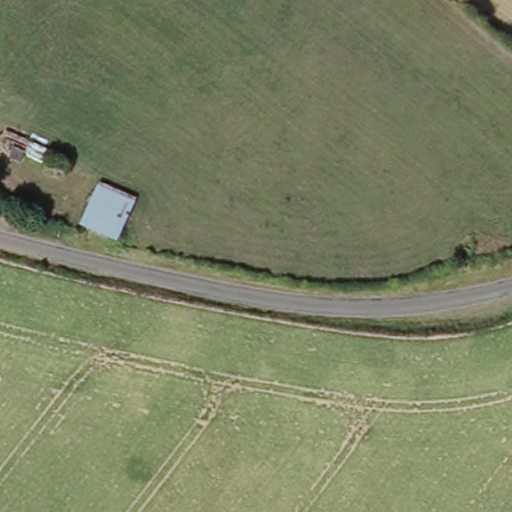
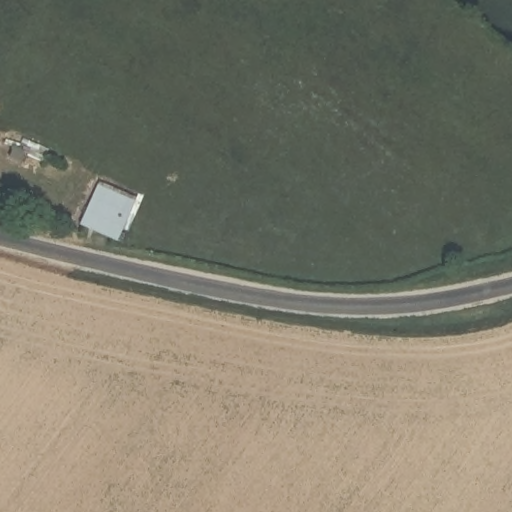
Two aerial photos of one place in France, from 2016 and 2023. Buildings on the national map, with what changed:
unchanged [(100,186),(137,201),(118,247),(81,230),(100,186)]

